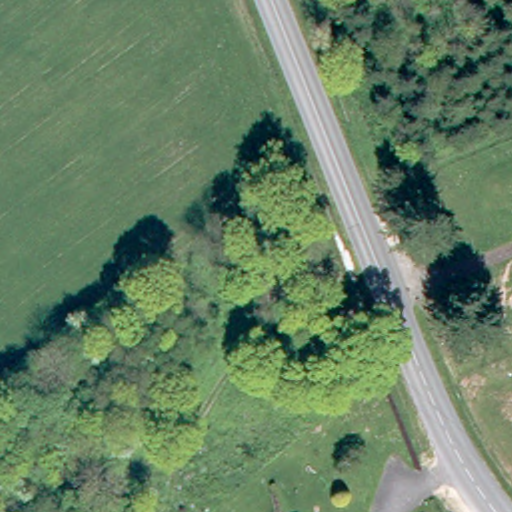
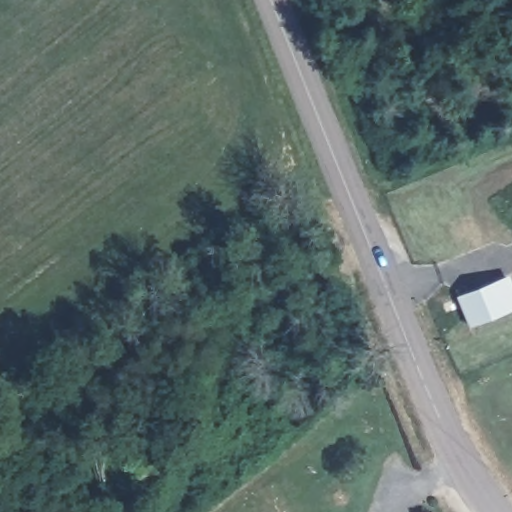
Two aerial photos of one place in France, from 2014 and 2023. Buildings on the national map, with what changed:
new [(512,308),(469,325),(457,296),(509,273),(512,281),(512,308)]

